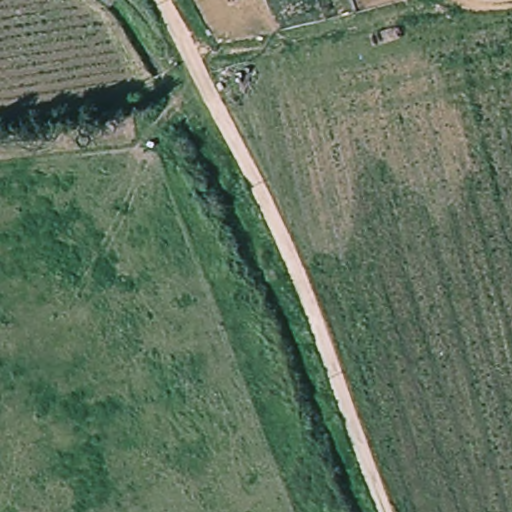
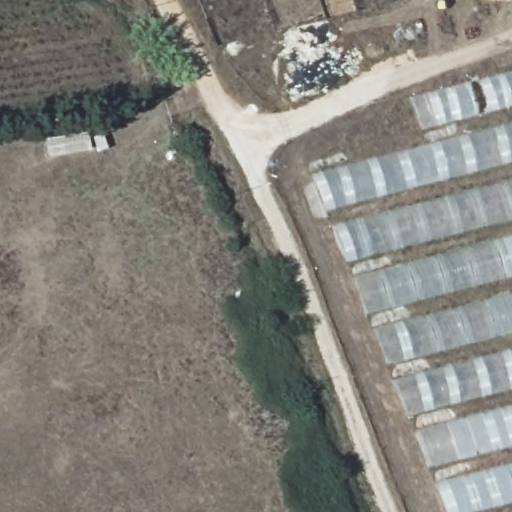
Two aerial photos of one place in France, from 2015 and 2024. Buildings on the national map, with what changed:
new [(314,176),(425,148),(410,100),(512,73),(512,504),(483,512),(446,512),(314,176)]

